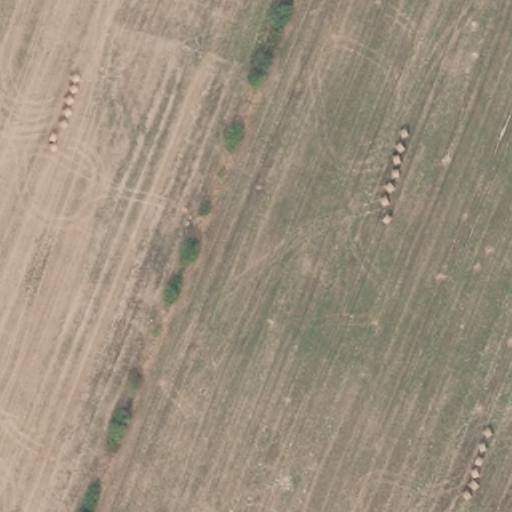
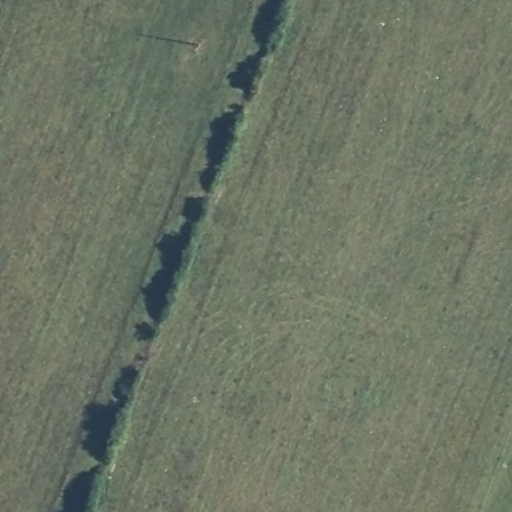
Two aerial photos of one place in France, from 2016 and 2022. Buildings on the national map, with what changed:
[]

